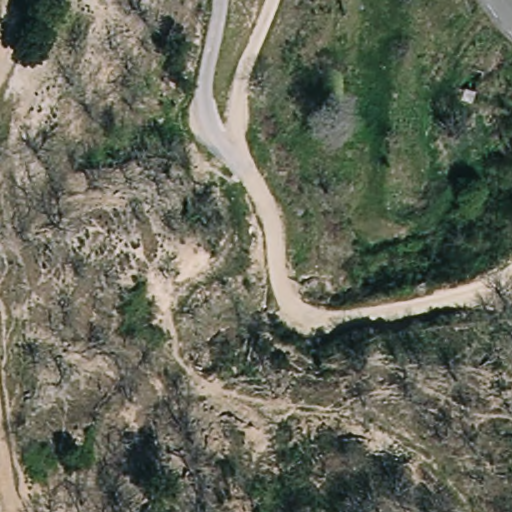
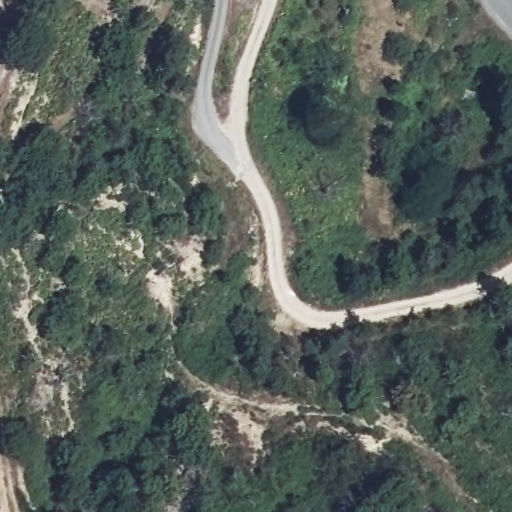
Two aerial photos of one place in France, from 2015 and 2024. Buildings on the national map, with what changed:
[]

